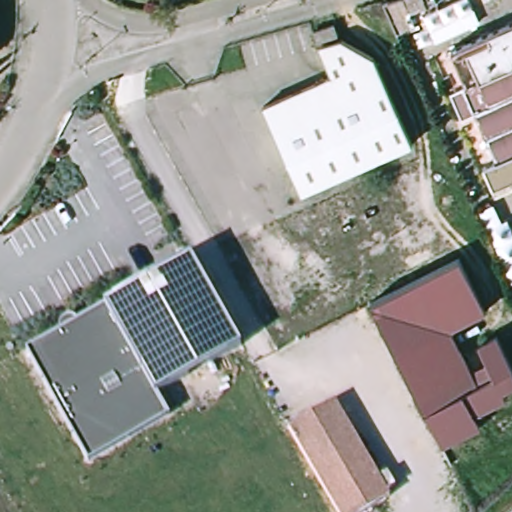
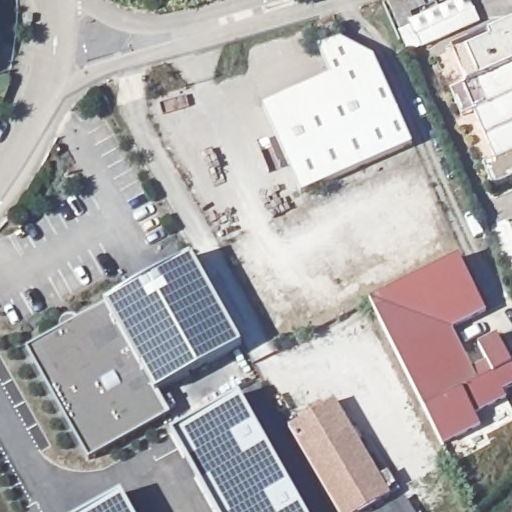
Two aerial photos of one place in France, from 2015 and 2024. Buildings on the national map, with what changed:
unchanged [(410,14),(416,28),(397,35),(384,5),(398,0),(424,0),(427,7),(410,14)]
unchanged [(480,167),(492,162),(469,113),(456,119),(444,92),(458,86),(462,83),(450,51),(512,23),(512,178),(489,188),(480,167)]
unchanged [(322,39),(338,34),(342,43),(326,49),(322,39)]
unchanged [(304,198),(265,106),(335,75),(323,53),(343,46),(347,45),(379,65),(416,149),(304,198)]
unchanged [(485,307),(449,325),(472,370),(488,361),(477,341),(497,331),(512,361),(512,382),(503,387),(506,394),(475,410),(481,422),(439,444),(368,299),(457,254),(485,307)]
unchanged [(158,391),(169,412),(87,456),(25,346),(60,328),(59,323),(60,319),(61,316),(65,313),(68,312),(73,313),(77,317),(190,255),(241,345),(158,391)]
new [(173,433),(239,395),(305,512),(217,512),(173,433)]
unchanged [(341,402),(391,491),(353,512),(342,512),(295,427),(341,402)]
new [(123,494),(133,512),(90,512),(123,494)]

